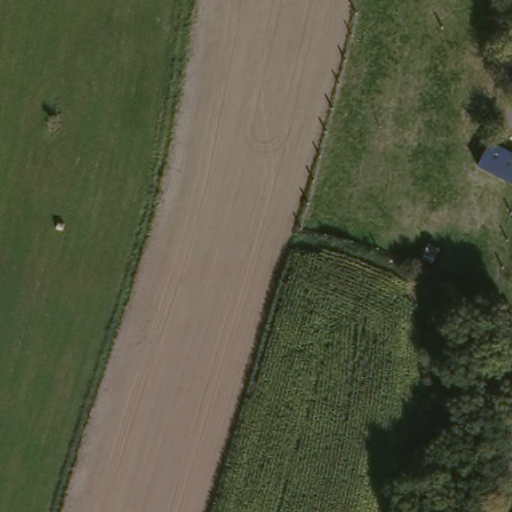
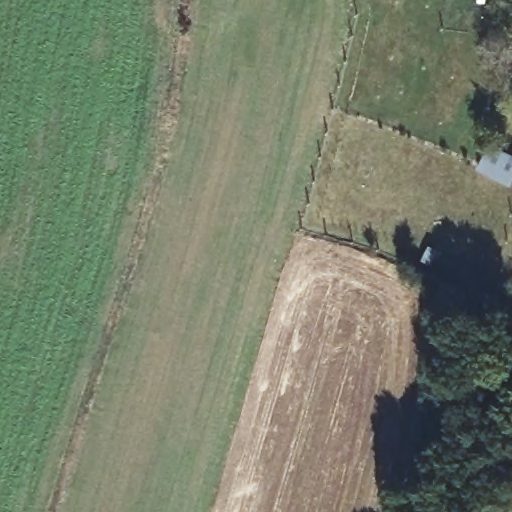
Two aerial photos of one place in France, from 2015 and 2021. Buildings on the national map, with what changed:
unchanged [(512,153),(512,182),(511,184),(476,165),(491,142),(512,153)]

